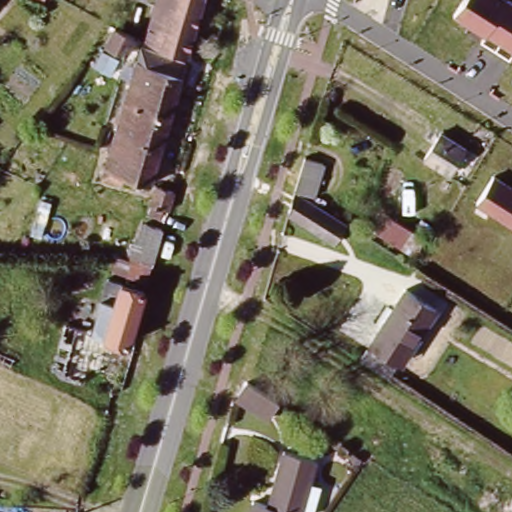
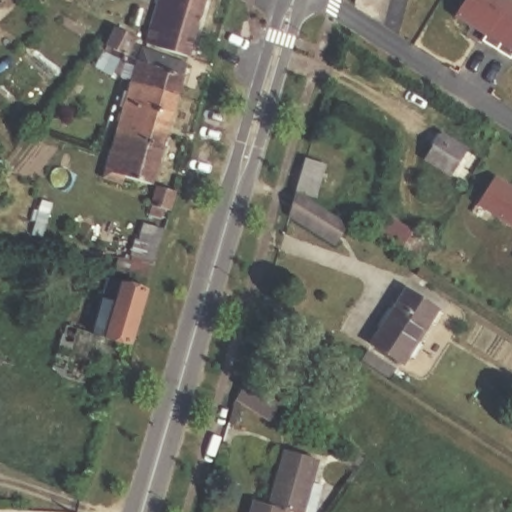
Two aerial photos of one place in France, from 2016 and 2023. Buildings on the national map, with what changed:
unchanged [(28,0),(36,0),(34,3),(28,0)]
unchanged [(155,39),(144,34),(155,0),(201,0),(185,49),(155,39)]
unchanged [(466,0),(512,0),(512,54),(455,21),(466,0)]
unchanged [(170,58),(181,61),(172,92),(125,79),(130,61),(131,56),(134,49),(146,51),(155,54),(163,56),(170,58)]
unchanged [(166,113),(118,99),(125,79),(172,92),(166,113)]
unchanged [(160,131),(133,124),(130,133),(110,128),(118,99),(166,113),(160,131)]
unchanged [(152,159),(104,146),(97,144),(104,126),(110,128),(130,133),(133,124),(160,131),(152,159)]
unchanged [(460,149),(445,173),(420,156),(435,131),(460,149)]
unchanged [(145,180),(130,176),(118,174),(116,180),(95,174),(104,146),(152,159),(145,180)]
unchanged [(321,165),(312,195),(296,191),(305,159),(321,165)]
unchanged [(512,227),(473,204),(492,173),(512,185),(512,227)]
unchanged [(173,187),(175,188),(169,210),(160,208),(158,218),(143,213),(152,182),(173,187)]
unchanged [(289,214),(296,191),(347,223),(335,243),(289,214)]
unchanged [(61,344),(67,324),(86,330),(92,332),(102,294),(106,278),(108,279),(116,254),(121,254),(131,257),(141,222),(163,228),(164,228),(153,264),(150,263),(142,290),(145,291),(141,305),(130,345),(126,344),(111,393),(71,381),(61,378),(70,347),(61,344)]
unchanged [(403,283),(436,302),(408,352),(405,357),(372,338),(376,332),(403,283)]
unchanged [(370,345),(398,364),(393,372),(364,354),(370,345)]
unchanged [(277,402),(267,419),(234,398),(245,381),(277,402)]
unchanged [(315,449),(308,471),(320,474),(309,508),(285,502),(281,512),(251,512),(242,509),(248,489),(266,494),(276,460),(282,439),(315,449)]

